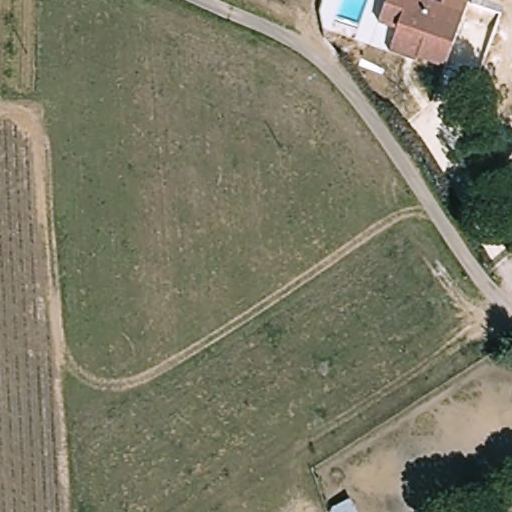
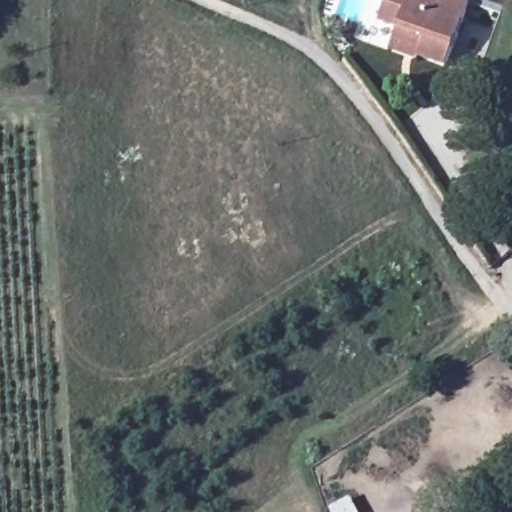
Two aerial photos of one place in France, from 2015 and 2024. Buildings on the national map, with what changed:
unchanged [(397,37),(401,26),(383,20),(390,0),(441,0),(445,1),(446,0),(471,0),(472,1),(450,64),(422,54),(420,61),(392,51),(397,37)]
unchanged [(356,505),(359,512),(343,512),(356,505)]

